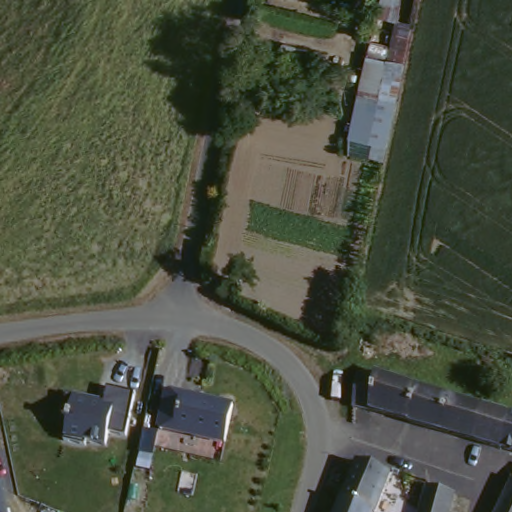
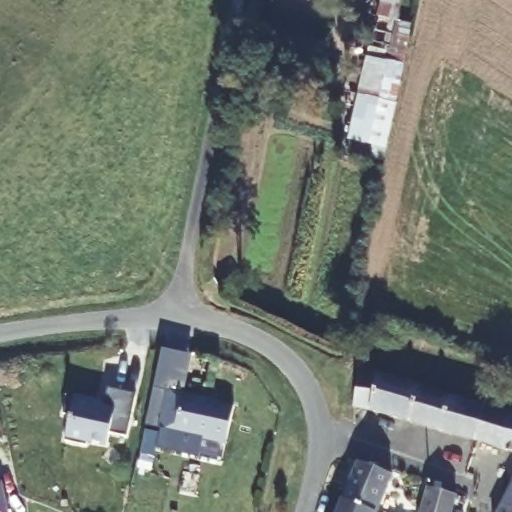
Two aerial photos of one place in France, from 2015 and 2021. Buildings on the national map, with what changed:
unchanged [(410,66),(385,155),(347,143),(369,59),(410,66)]
unchanged [(471,441),(470,444),(411,424),(390,418),(349,405),(355,374),(374,373),(482,407),(494,411),(505,414),(512,416),(512,453),(495,449),(471,441)]
unchanged [(135,398),(123,438),(109,434),(101,453),(50,437),(60,399),(94,408),(102,390),(135,398)]
unchanged [(230,409),(224,447),(152,432),(162,395),(230,409)]
unchanged [(337,503),(354,463),(390,474),(375,512),(369,512),(337,503)]
unchanged [(10,512),(0,512),(0,485),(4,484),(10,512)]
unchanged [(454,496),(449,512),(418,512),(425,486),(454,496)]
unchanged [(512,493),(512,512),(503,512),(512,493)]
unchanged [(337,503),(369,512),(334,512),(337,503)]

